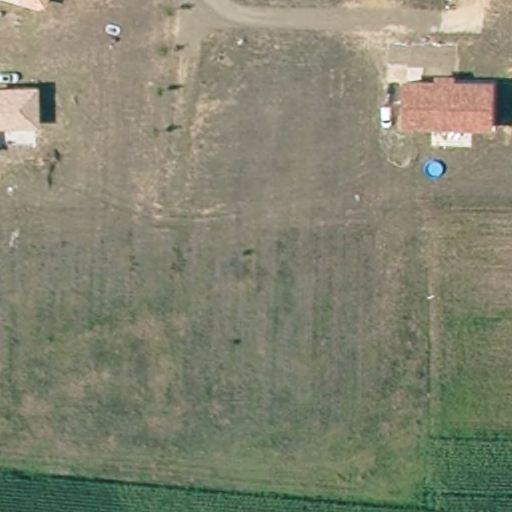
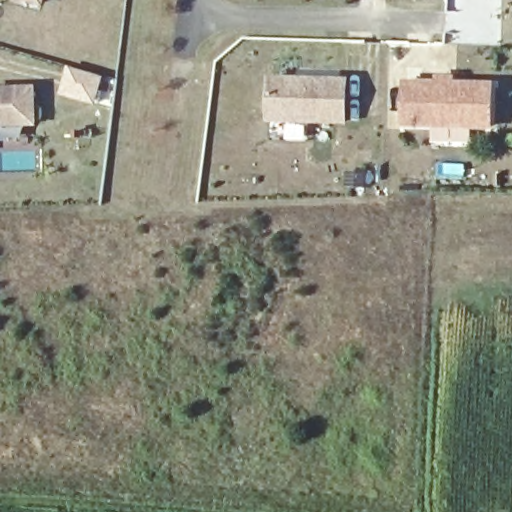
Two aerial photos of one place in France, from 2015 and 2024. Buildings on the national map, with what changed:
unchanged [(20,0),(47,0),(45,8),(20,0)]
new [(70,67),(100,76),(92,101),(62,92),(70,67)]
new [(347,123),(267,122),(268,74),(350,77),(347,123)]
unchanged [(402,129),(405,80),(435,81),(435,75),(457,75),(457,81),(496,81),(493,131),(402,129)]
unchanged [(39,126),(0,128),(0,87),(38,85),(39,126)]

